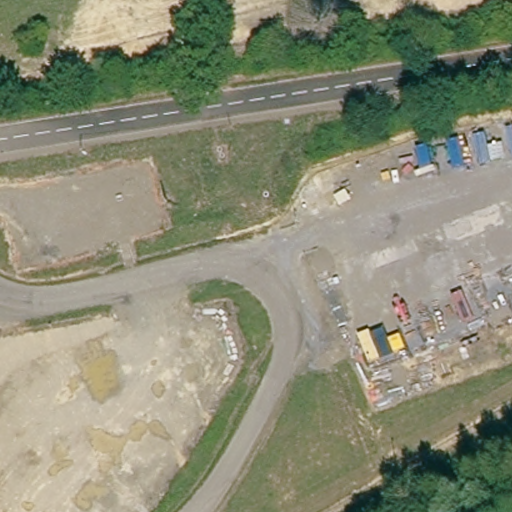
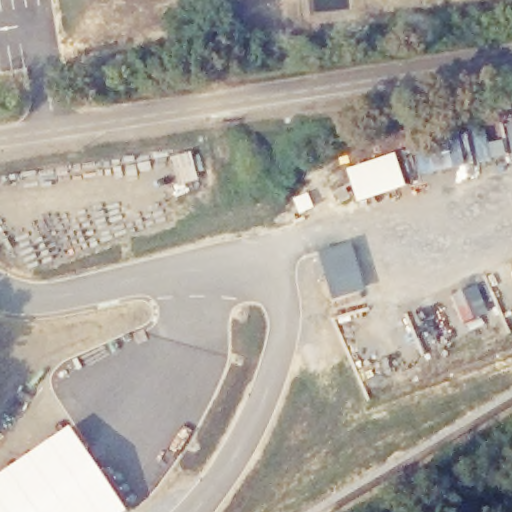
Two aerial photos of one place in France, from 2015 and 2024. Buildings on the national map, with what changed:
new [(358,203),(346,170),(395,153),(406,187),(358,203)]
new [(0,512),(0,477),(70,429),(125,512),(0,512)]

